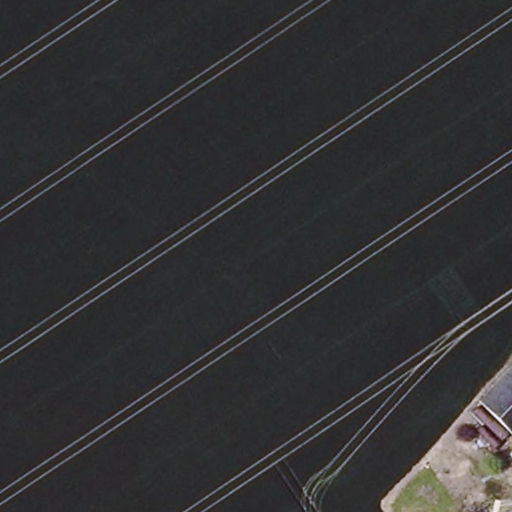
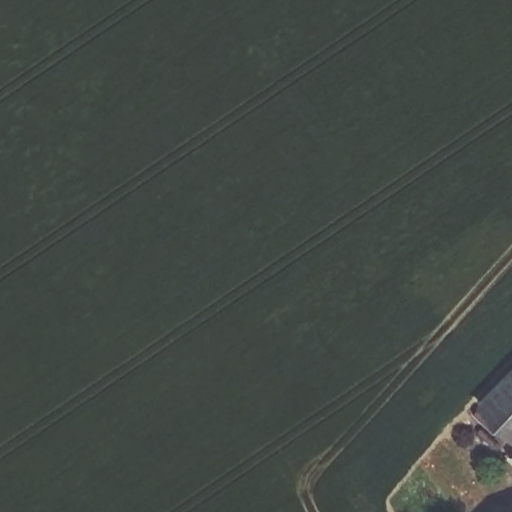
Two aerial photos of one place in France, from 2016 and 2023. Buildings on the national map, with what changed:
unchanged [(512,369),(512,424),(485,398),(497,385),(512,369)]

